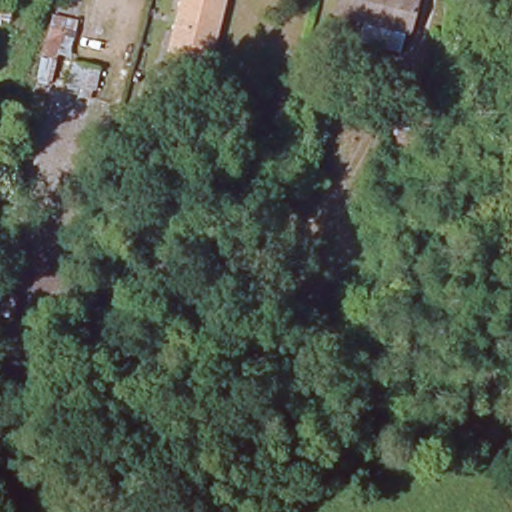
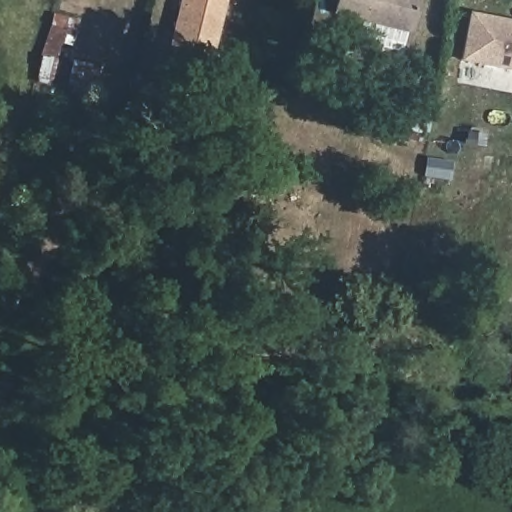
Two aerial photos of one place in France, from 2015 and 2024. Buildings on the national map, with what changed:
unchanged [(165,62),(180,0),(218,0),(200,70),(165,62)]
unchanged [(357,35),(359,21),(328,15),(332,0),(413,0),(405,31),(401,30),(398,45),(357,35)]
new [(459,65),(467,14),(512,22),(512,73),(459,65)]
unchanged [(64,58),(55,56),(49,84),(33,81),(41,35),(69,39),(64,58)]
unchanged [(90,90),(62,85),(66,65),(96,69),(90,90)]

